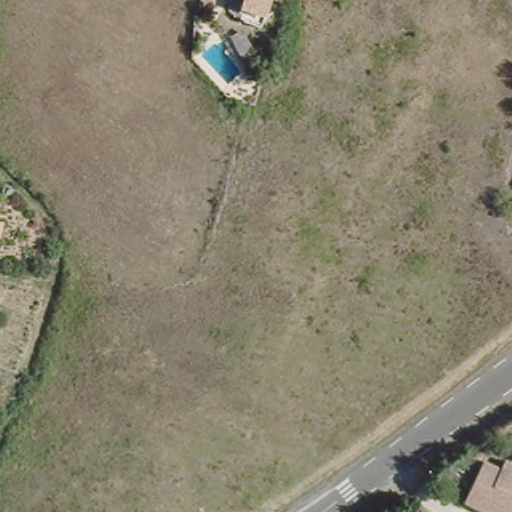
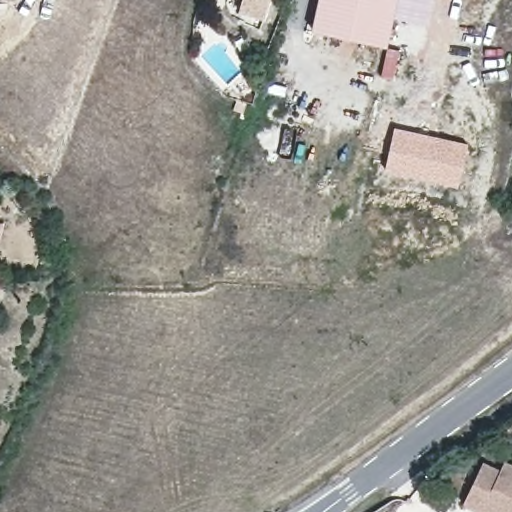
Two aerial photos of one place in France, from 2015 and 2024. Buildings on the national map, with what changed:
unchanged [(239,14),(242,0),(243,0),(269,0),(262,21),(239,14)]
new [(397,0),(387,46),(312,30),(318,0),(397,0)]
new [(397,0),(433,0),(428,25),(394,17),(397,0)]
new [(393,125),(469,142),(459,187),(383,173),(393,125)]
unchanged [(461,503),(475,463),(495,469),(499,456),(512,461),(512,512),(484,512),(480,510),(461,503)]

